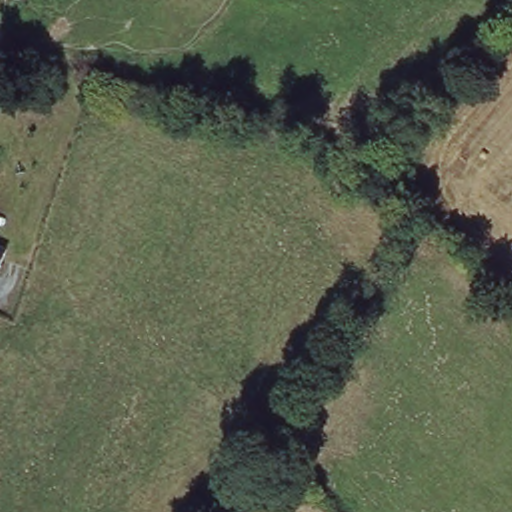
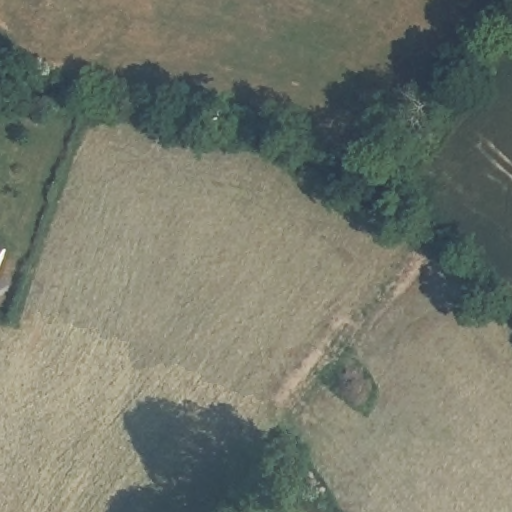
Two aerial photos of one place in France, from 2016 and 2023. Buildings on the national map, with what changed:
unchanged [(0,245),(7,248),(0,267),(0,245)]

